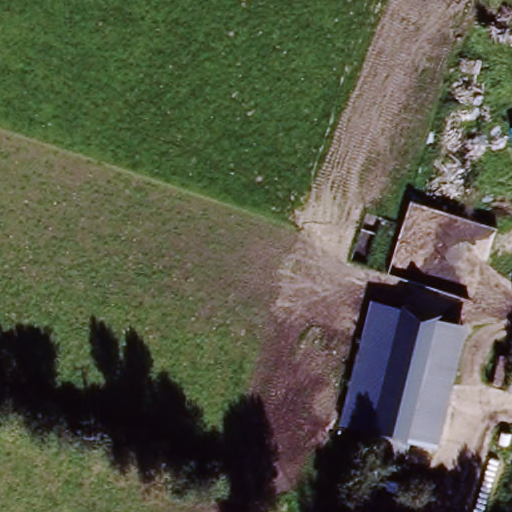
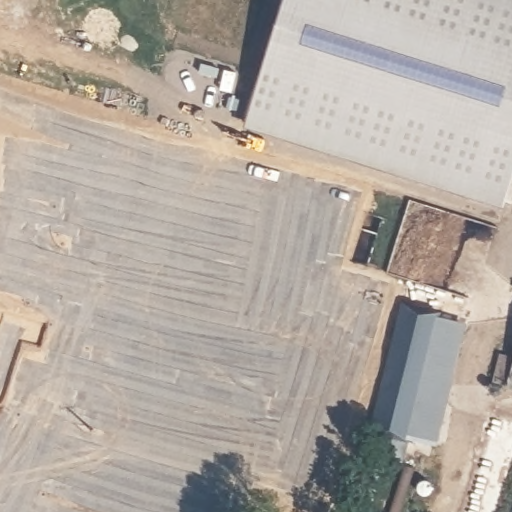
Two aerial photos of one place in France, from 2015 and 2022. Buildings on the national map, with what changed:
new [(502,208),(245,127),(285,0),(512,0),(512,178),(502,208)]
unchanged [(437,450),(410,444),(405,467),(370,459),(374,435),(340,427),(371,300),(441,312),(440,320),(467,325),(437,450)]
unchanged [(507,389),(495,385),(502,354),(512,357),(512,390),(507,389)]
unchanged [(371,512),(364,512),(352,508),(363,464),(384,469),(371,512)]

